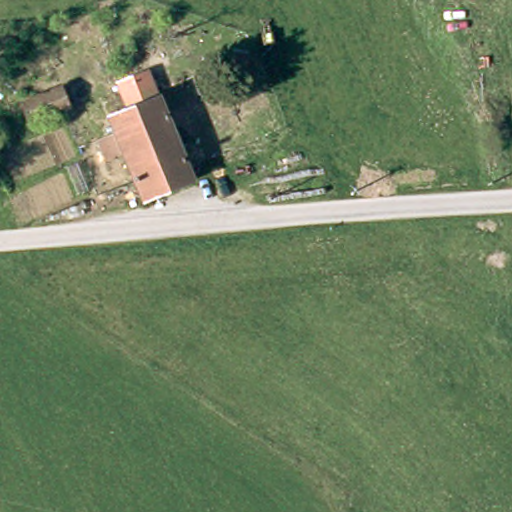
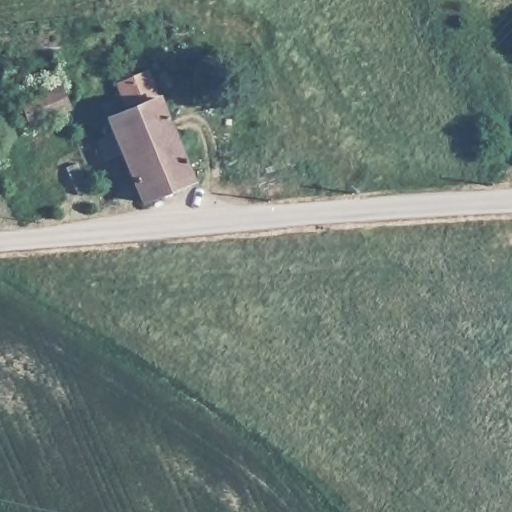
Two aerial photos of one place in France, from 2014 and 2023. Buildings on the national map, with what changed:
unchanged [(127,106),(117,83),(143,72),(153,96),(189,177),(136,201),(115,152),(99,160),(90,139),(100,135),(93,120),(127,106)]
unchanged [(34,110),(26,88),(65,73),(73,94),(65,97),(34,110)]

